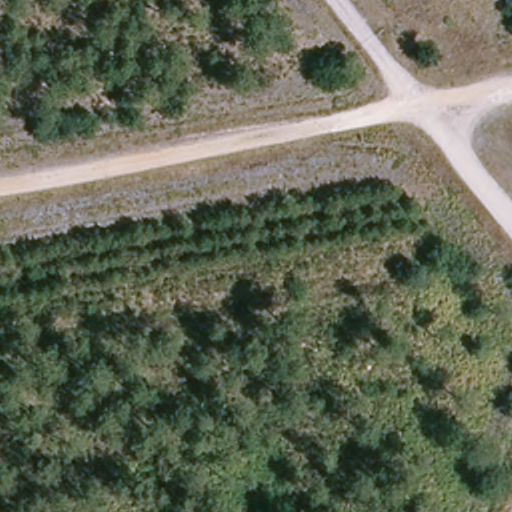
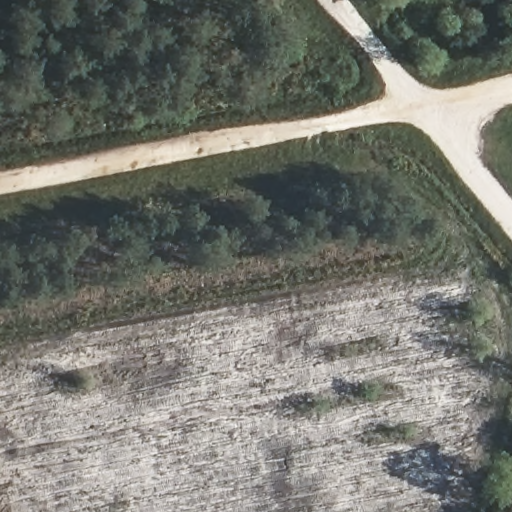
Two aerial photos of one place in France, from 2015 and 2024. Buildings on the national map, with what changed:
[]

